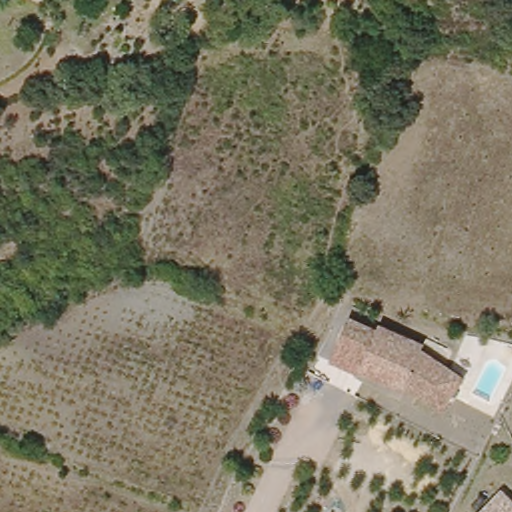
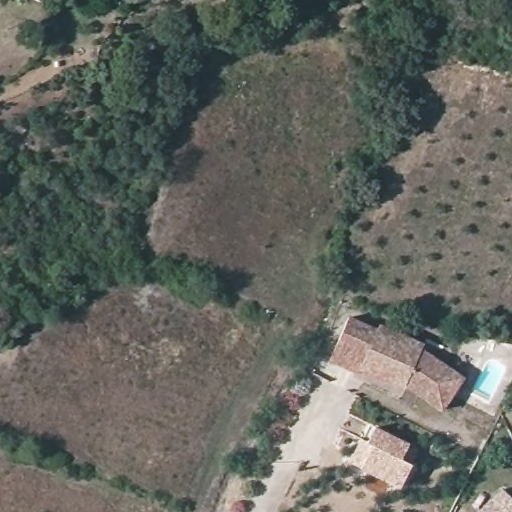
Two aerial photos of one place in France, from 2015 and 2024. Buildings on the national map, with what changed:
unchanged [(39,0),(44,0),(43,1),(39,0)]
unchanged [(363,374),(333,362),(351,318),(379,330),(381,325),(426,343),(424,347),(449,363),(468,376),(447,408),(409,385),(366,367),(363,374)]
new [(366,442),(374,426),(409,444),(402,460),(412,465),(400,489),(361,469),(349,463),(366,442)]
unchanged [(504,491),(512,498),(512,512),(484,512),(504,491)]

